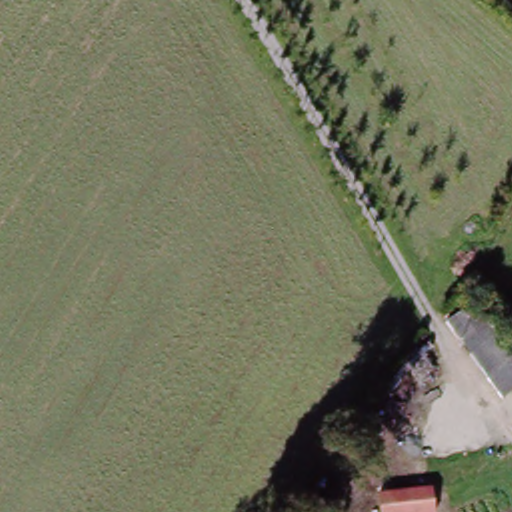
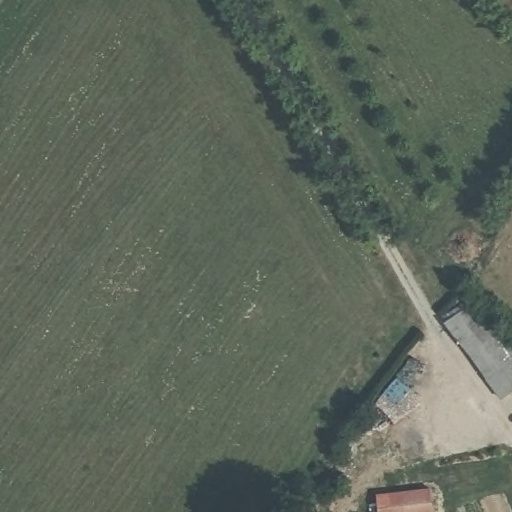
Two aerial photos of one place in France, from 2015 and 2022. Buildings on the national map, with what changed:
unchanged [(442,324),(475,302),(512,351),(512,393),(501,402),(442,324)]
unchanged [(375,497),(430,488),(434,512),(378,512),(375,497)]

